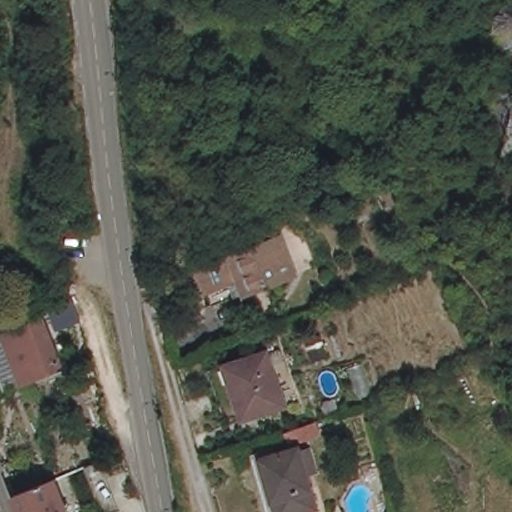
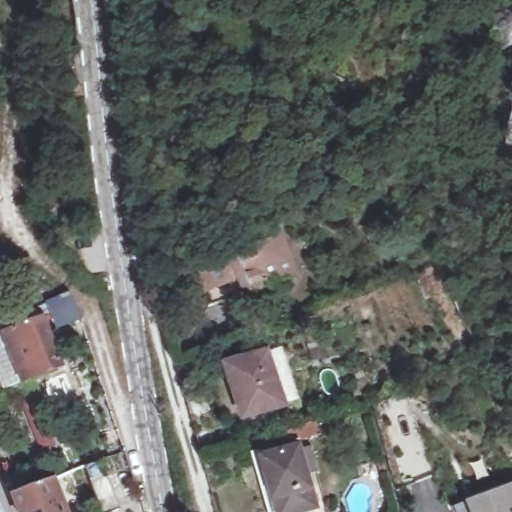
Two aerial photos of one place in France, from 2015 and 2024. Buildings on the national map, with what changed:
unchanged [(509,41),(508,0),(512,0),(512,41),(509,41)]
unchanged [(12,47),(0,48),(0,16),(12,37),(12,47)]
unchanged [(0,93),(0,83),(3,84),(0,93)]
unchanged [(292,232),(305,268),(224,298),(210,263),(292,232)]
unchanged [(77,290),(87,312),(62,322),(55,306),(42,311),(39,303),(75,288),(77,290)]
unchanged [(44,316),(52,313),(70,361),(30,377),(12,327),(44,316)]
unchanged [(275,343),(294,398),(249,414),(236,378),(230,360),(275,343)]
unchanged [(267,447),(280,443),(282,452),(307,446),(322,506),(298,512),(278,512),(260,452),(267,449),(267,447)]
unchanged [(112,451),(135,503),(109,512),(107,512),(87,462),(112,451)]
unchanged [(54,474),(59,472),(73,508),(64,512),(24,512),(15,490),(42,478),(54,474)]
new [(470,502),(512,485),(512,512),(461,512),(472,507),(470,502)]

